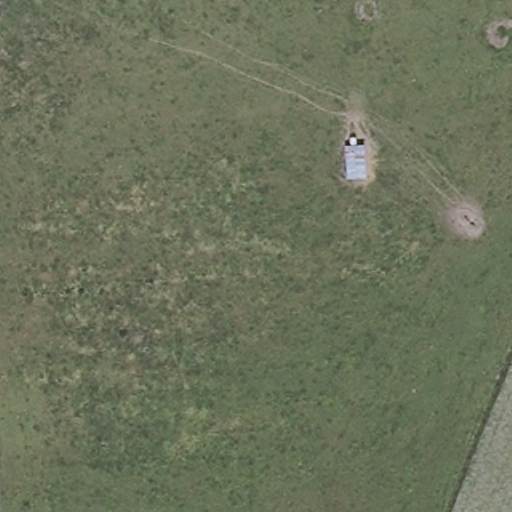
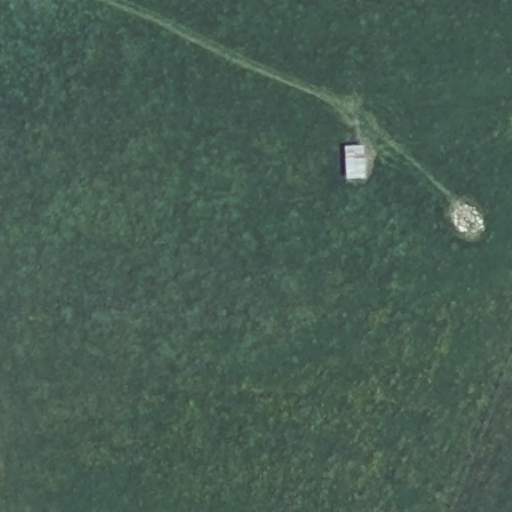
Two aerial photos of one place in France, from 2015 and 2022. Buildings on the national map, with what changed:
unchanged [(367,152),(368,184),(350,186),(350,152),(367,152)]

